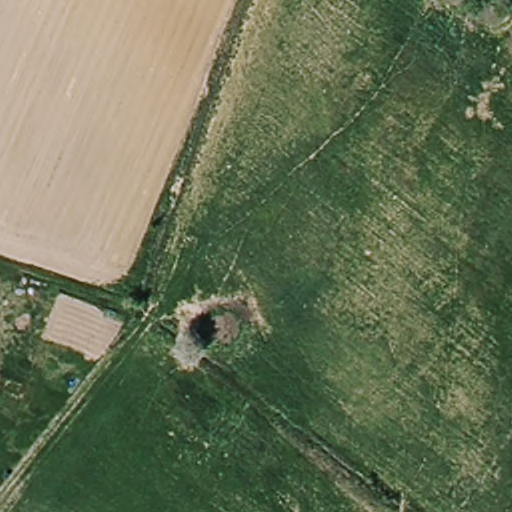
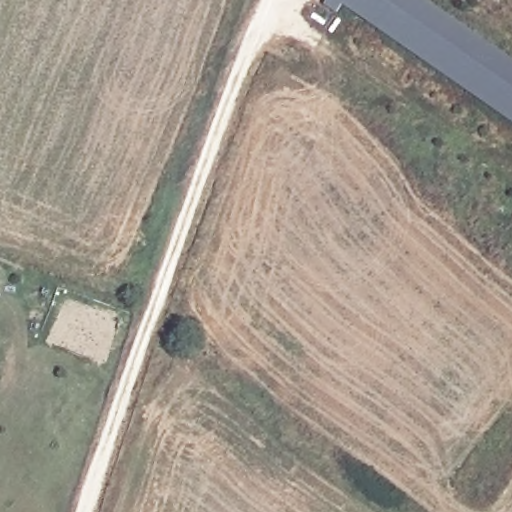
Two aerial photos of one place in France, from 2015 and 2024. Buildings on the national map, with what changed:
new [(335,14),(325,6),(328,0),(424,0),(512,61),(512,122),(341,6),(335,14)]

